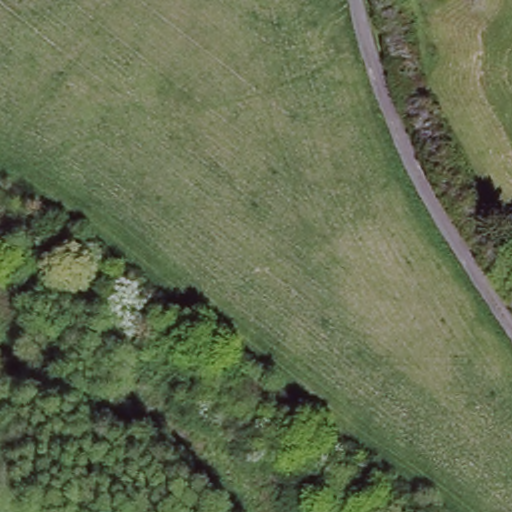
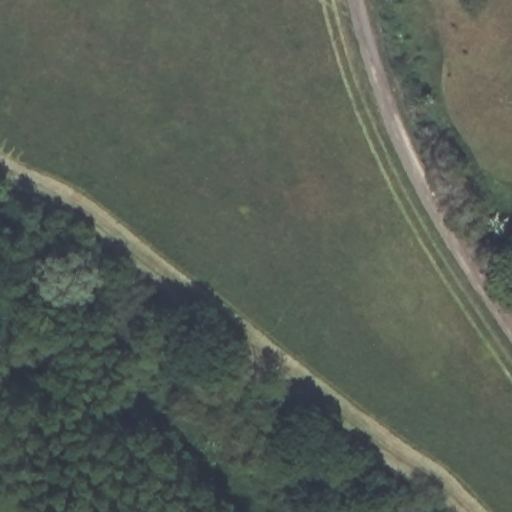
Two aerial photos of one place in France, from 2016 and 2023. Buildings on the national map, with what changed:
[]

